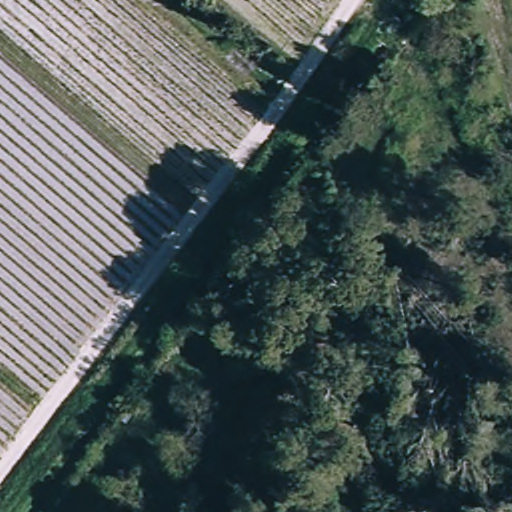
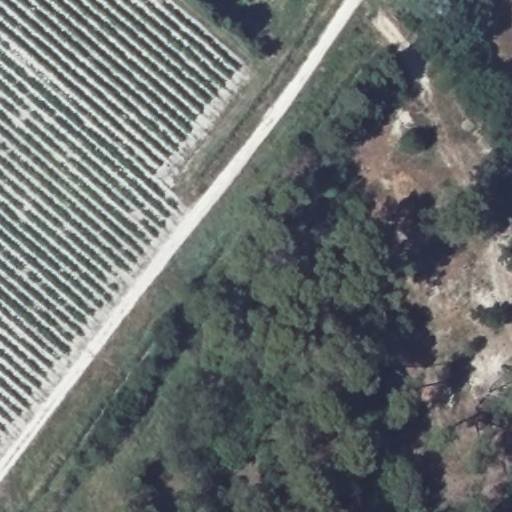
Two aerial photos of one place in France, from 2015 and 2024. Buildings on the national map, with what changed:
unchanged [(324,369),(307,372),(303,353),(320,350),(324,369)]

